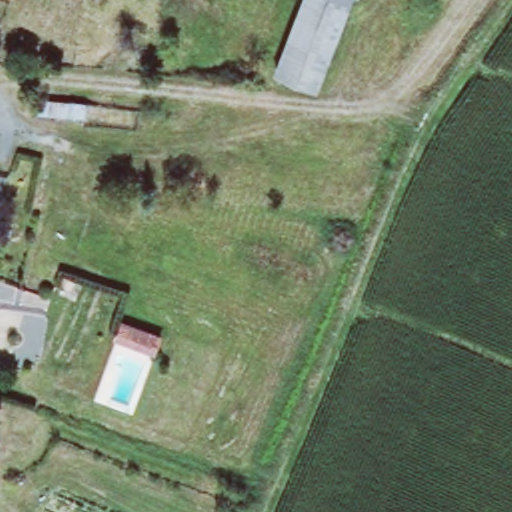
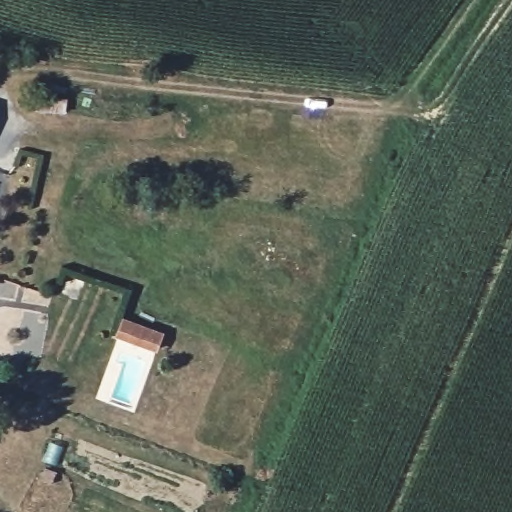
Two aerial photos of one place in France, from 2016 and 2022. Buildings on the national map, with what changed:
demolished [(327,87),(278,69),(305,0),(361,0),(351,24),(327,87)]
new [(152,351),(147,365),(106,349),(111,335),(152,351)]

